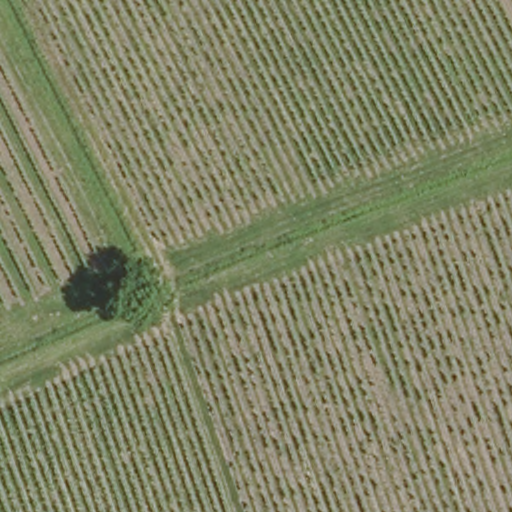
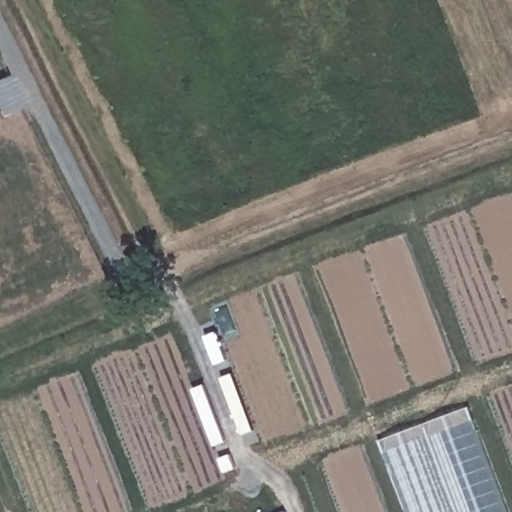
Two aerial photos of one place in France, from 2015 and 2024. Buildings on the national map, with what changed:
new [(509,512),(406,512),(380,441),(469,407),(509,512)]

